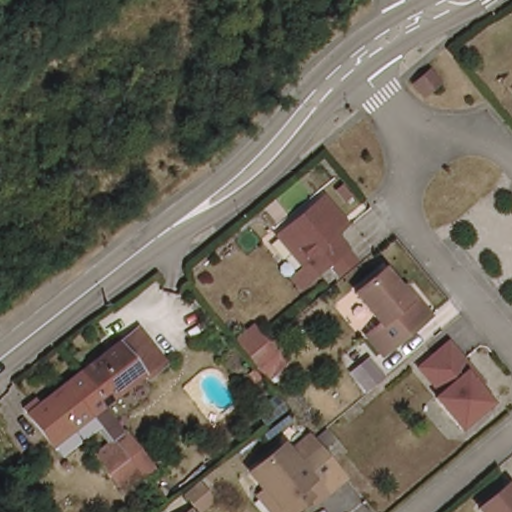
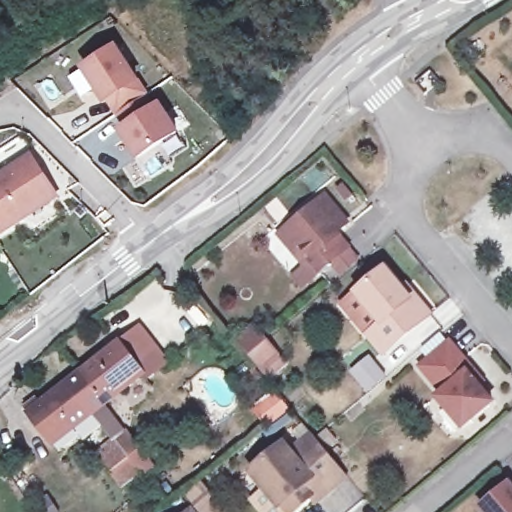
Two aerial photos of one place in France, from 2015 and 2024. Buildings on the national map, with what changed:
new [(122,127),(115,116),(105,105),(80,67),(116,43),(142,83),(150,94),(148,96),(156,106),(161,103),(181,133),(137,162),(117,131),(122,127)]
new [(30,153),(62,198),(3,235),(0,230),(0,173),(30,153)]
unchanged [(294,251),(279,232),(326,195),(348,222),(339,229),(339,234),(348,246),(319,269),(309,257),(304,262),(294,251)]
unchanged [(380,324),(356,293),(384,270),(400,290),(405,286),(414,297),(429,317),(380,356),(365,336),(380,324)]
unchanged [(238,340),(255,327),(264,342),(274,357),(256,371),(247,355),(238,340)]
unchanged [(24,398),(37,390),(41,397),(84,371),(146,333),(170,374),(148,387),(146,382),(83,419),(49,439),(28,404),(24,398)]
unchanged [(438,399),(444,395),(423,369),(453,345),(474,373),(484,386),(479,389),(492,406),(461,430),(438,399)]
unchanged [(123,436),(149,477),(127,495),(99,451),(123,436)]
unchanged [(291,452),(298,460),(320,441),(339,466),(317,483),(321,488),(328,497),(318,505),(309,512),(273,512),(264,501),(272,496),(258,478),(291,452)]
unchanged [(512,485),(512,512),(484,512),(479,505),(509,481),(512,485)]
unchanged [(211,484),(222,500),(208,510),(196,494),(211,484)]
unchanged [(195,512),(187,512),(193,508),(195,512)]

